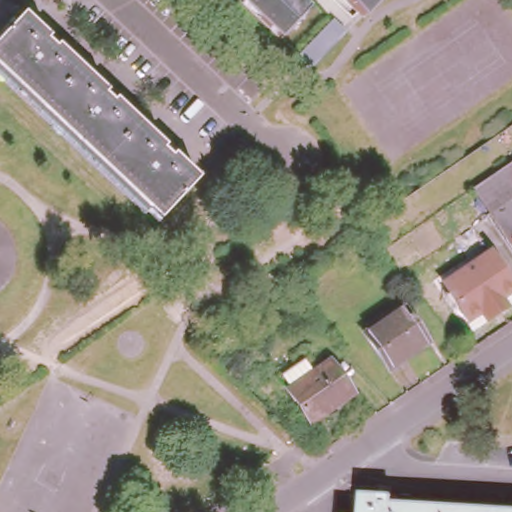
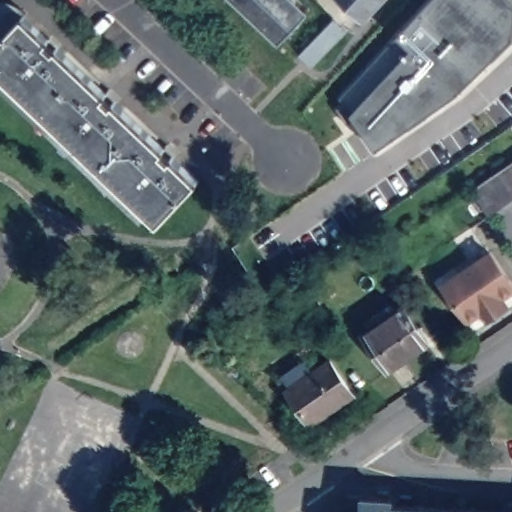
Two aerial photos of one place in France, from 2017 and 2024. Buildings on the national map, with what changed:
unchanged [(282,42),(237,0),(295,0),(309,14),(282,42)]
unchanged [(358,16),(342,0),(385,0),(365,22),(358,16)]
new [(399,37),(402,40),(408,33),(404,29),(431,0),(511,0),(512,1),(512,37),(452,100),(377,147),(355,109),(342,97),(399,37)]
unchanged [(0,2),(15,4),(26,13),(22,17),(0,40),(0,2)]
unchanged [(0,75),(0,40),(22,17),(198,181),(160,222),(0,75)]
new [(333,19),(345,30),(314,64),(302,52),(333,19)]
unchanged [(472,189),(512,161),(512,192),(485,210),(472,189)]
unchanged [(512,278),(512,291),(505,296),(507,301),(487,315),(484,310),(470,320),(445,282),(475,262),(492,250),(512,278)]
unchanged [(432,352),(392,378),(369,342),(408,317),(432,352)]
unchanged [(358,397),(315,427),(292,392),(335,363),(358,397)]
unchanged [(398,496),(397,502),(512,511),(512,512),(365,512),(367,494),(398,496)]

